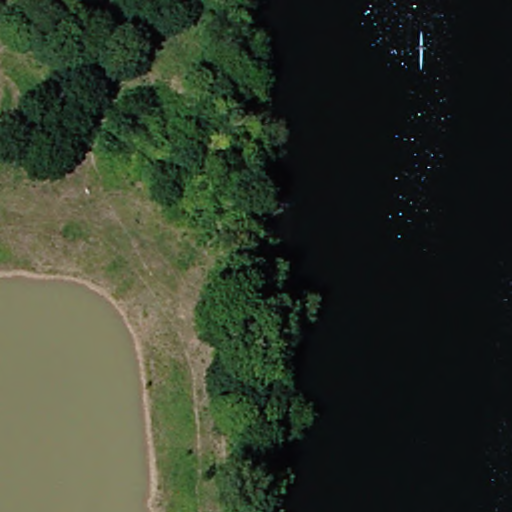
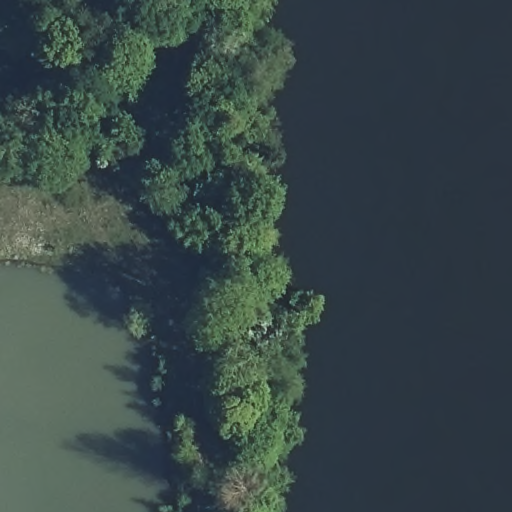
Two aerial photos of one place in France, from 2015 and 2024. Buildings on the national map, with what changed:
unchanged [(150,143),(195,158),(187,185),(141,172),(150,143)]

